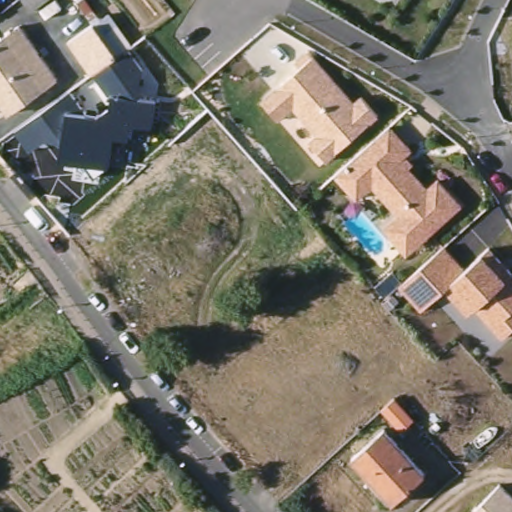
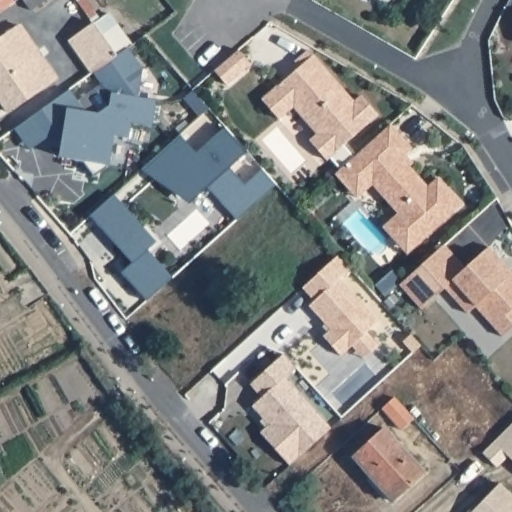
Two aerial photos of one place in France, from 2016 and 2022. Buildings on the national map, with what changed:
unchanged [(23,0),(45,0),(31,10),(23,0)]
unchanged [(82,31),(94,23),(95,24),(108,15),(131,45),(117,55),(106,64),(90,74),(67,42),(82,31)]
unchanged [(8,113),(0,102),(0,39),(17,26),(56,79),(8,113)]
unchanged [(62,143),(48,136),(31,149),(16,130),(70,91),(87,111),(100,113),(110,106),(111,92),(96,75),(129,51),(144,69),(139,95),(157,98),(153,127),(134,124),(132,138),(117,136),(112,164),(61,159),(62,143)]
unchanged [(311,56),(349,100),(357,93),(375,115),(323,163),(305,144),(313,136),(291,113),(280,122),(259,99),(311,56)]
unchanged [(407,253),(383,226),(397,213),(371,184),(357,197),(335,174),(391,124),(411,146),(405,151),(413,161),(411,165),(427,187),(438,177),(462,203),(407,253)]
new [(226,126),(247,150),(228,167),(244,184),(262,168),(277,184),(236,220),(206,187),(189,203),(150,175),(141,169),(180,134),(186,142),(197,153),(226,126)]
new [(147,250),(172,278),(147,302),(121,273),(132,263),(96,224),(89,216),(113,194),(120,202),(157,242),(147,250)]
unchanged [(440,250),(458,270),(485,248),(512,276),(512,328),(501,337),(475,309),(467,317),(441,290),(421,310),(397,287),(440,250)]
new [(364,358),(352,345),(341,356),(323,336),(331,329),(310,305),(315,300),(303,287),(340,255),(352,269),(340,279),(378,321),(367,332),(379,345),(364,358)]
new [(270,425),(252,406),(262,397),(251,384),(284,354),(297,368),(285,378),(331,428),(290,465),(275,449),(261,433),(265,430),(270,425)]
unchanged [(413,419),(401,429),(382,409),(392,400),(393,398),(403,407),(413,419)]
new [(512,425),(512,459),(508,456),(497,466),(483,452),(512,425)]
unchanged [(419,473),(389,501),(348,457),(378,428),(419,473)]
unchanged [(468,512),(495,484),(512,501),(512,512),(468,512)]

